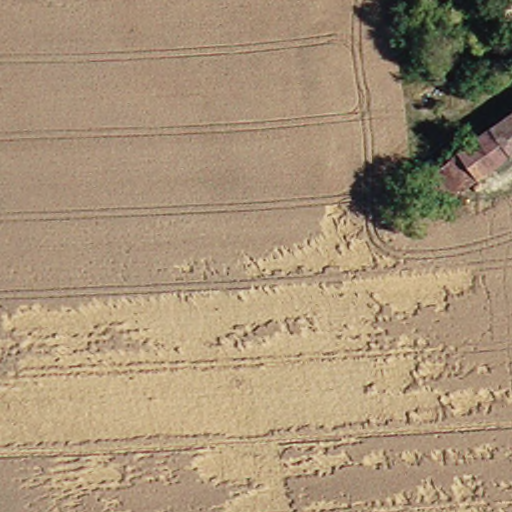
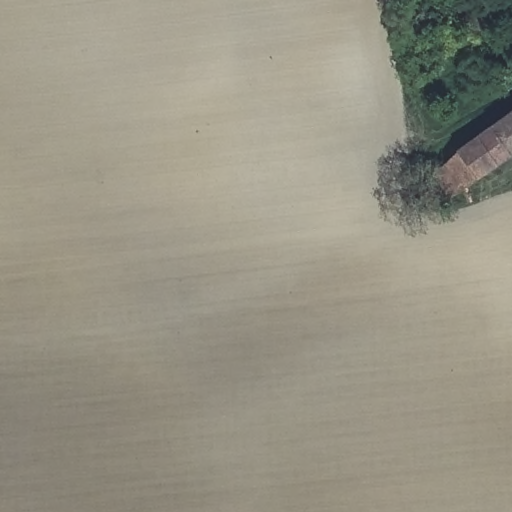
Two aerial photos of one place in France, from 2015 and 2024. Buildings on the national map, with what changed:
unchanged [(473,179),(446,199),(428,172),(452,150),(512,106),(512,151),(473,179)]

